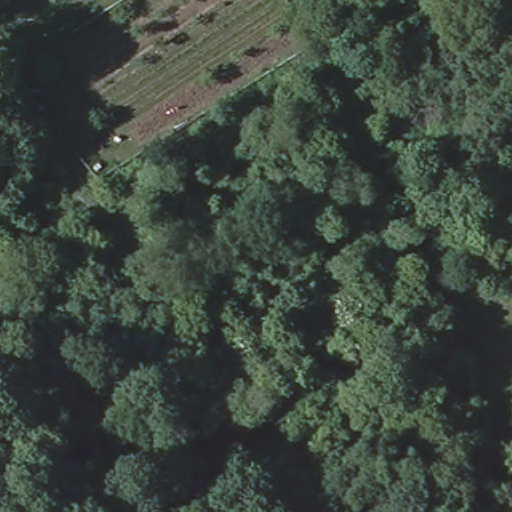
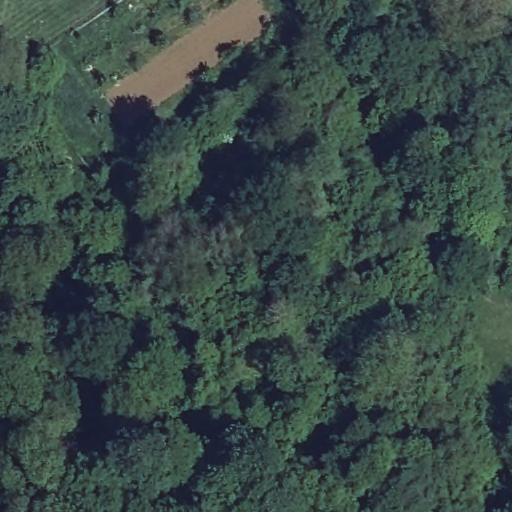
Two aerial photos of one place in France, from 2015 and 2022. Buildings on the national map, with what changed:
[]

